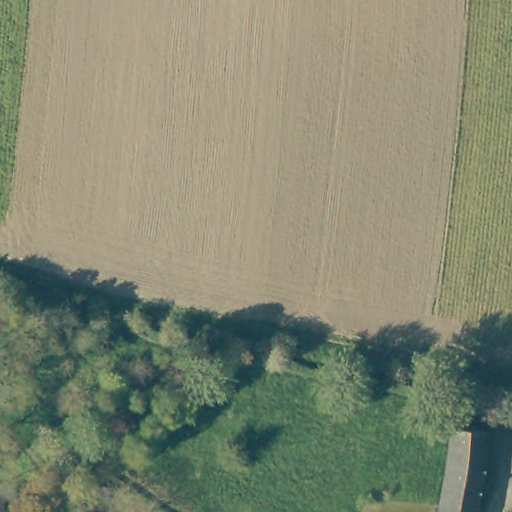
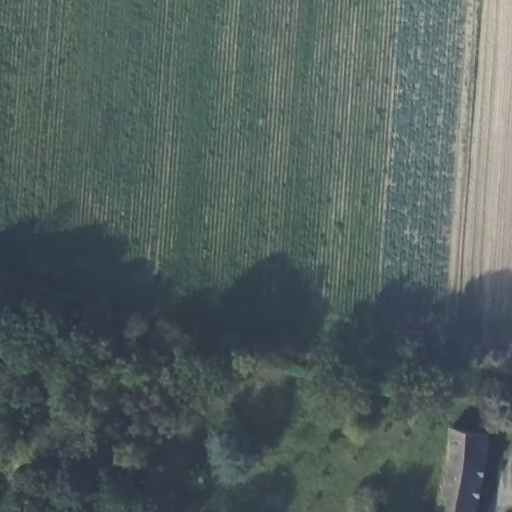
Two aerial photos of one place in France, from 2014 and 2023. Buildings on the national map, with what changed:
unchanged [(464,437),(488,440),(474,512),(435,512),(450,436),(464,437)]
unchanged [(90,483),(110,494),(106,505),(84,494),(89,485),(90,483)]

